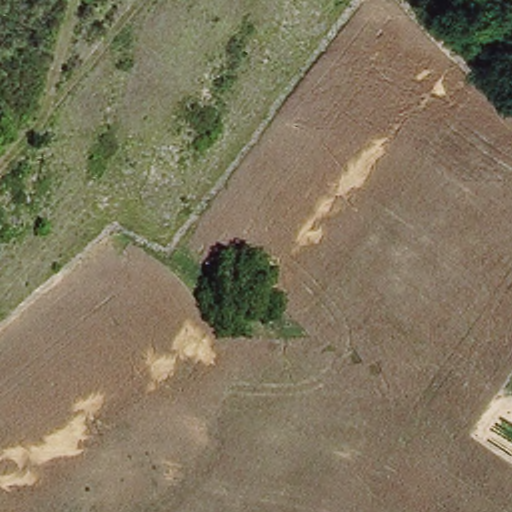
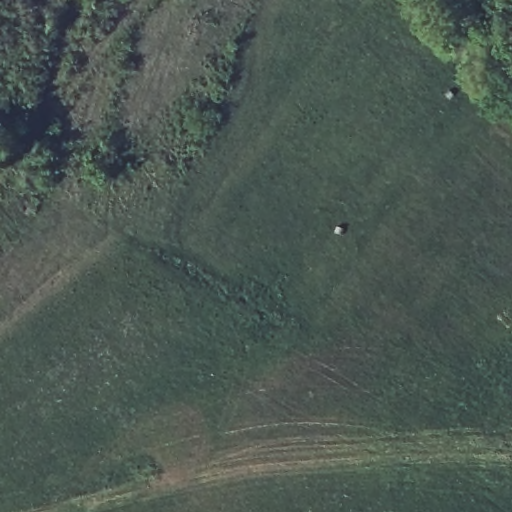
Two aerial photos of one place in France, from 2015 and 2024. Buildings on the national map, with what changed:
[]

